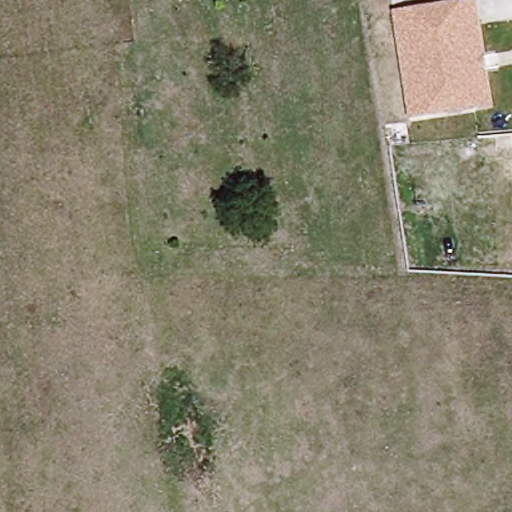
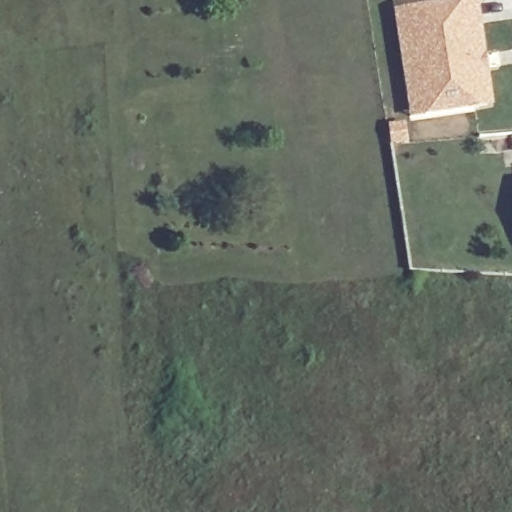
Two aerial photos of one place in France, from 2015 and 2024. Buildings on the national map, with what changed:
unchanged [(476,1),(480,25),(466,27),(477,109),(428,115),(415,35),(434,31),(430,8),(476,1)]
unchanged [(396,13),(430,8),(434,31),(415,35),(428,115),(413,118),(396,13)]
unchanged [(477,109),(466,27),(480,25),(492,106),(477,109)]

